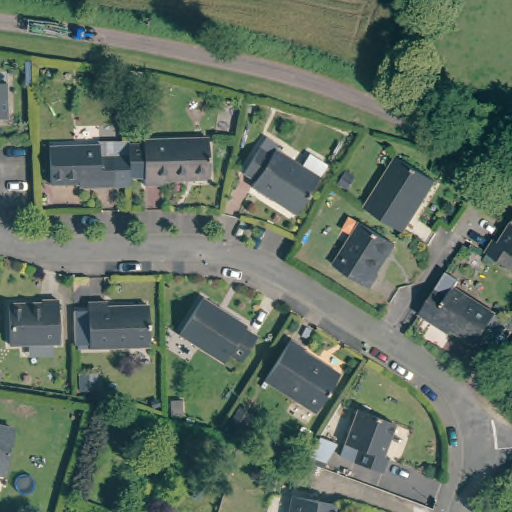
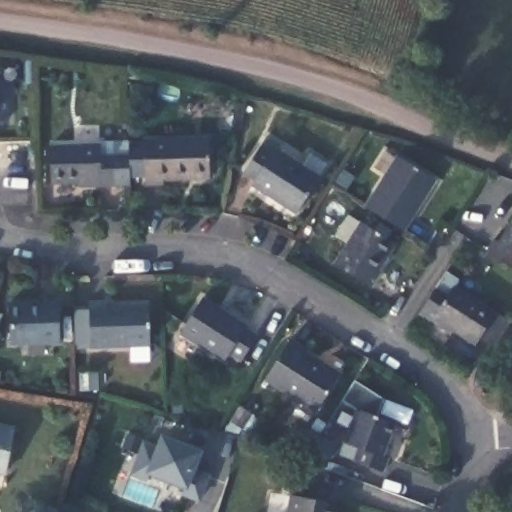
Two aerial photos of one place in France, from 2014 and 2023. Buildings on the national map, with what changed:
unchanged [(7,89),(8,115),(0,115),(0,79),(6,79),(7,89)]
unchanged [(142,139),(142,135),(207,134),(208,173),(161,176),(161,179),(143,180),(143,172),(128,173),(127,139),(142,139)]
unchanged [(76,178),(48,178),(48,141),(96,140),(97,137),(127,137),(127,139),(128,173),(128,181),(97,182),(76,183),(76,178)]
unchanged [(276,203),(253,187),(257,181),(245,172),(260,150),(267,139),(279,147),(276,151),(301,168),(309,155),(327,166),(299,212),(296,215),(276,203)]
unchanged [(434,177),(402,228),(364,205),(396,154),(434,177)]
unchanged [(367,286),(332,263),(360,220),(395,242),(367,286)]
unchanged [(495,249),(503,237),(506,239),(512,230),(512,260),(495,249)]
unchanged [(436,324),(423,316),(449,273),(462,282),(457,289),(512,322),(512,323),(496,347),(484,340),(480,345),(455,330),(453,334),(436,324)]
unchanged [(250,324),(260,331),(243,359),(233,351),(227,359),(183,330),(203,298),(205,295),(227,308),(251,322),(250,324)]
unchanged [(8,301),(40,300),(40,298),(57,298),(58,340),(8,341),(8,301)]
unchanged [(83,345),(82,308),(98,308),(98,299),(117,299),(117,302),(157,301),(158,343),(83,345)]
unchanged [(303,347),(301,349),(338,372),(314,410),(263,377),(289,338),(303,347)]
unchanged [(79,370),(93,370),(94,388),(79,389),(79,370)]
unchanged [(360,407),(399,420),(387,454),(391,455),(386,470),(359,459),(364,446),(348,441),(360,407)]
unchanged [(6,472),(0,471),(0,423),(15,426),(6,472)]
unchanged [(331,462),(309,453),(322,434),(339,441),(331,462)]
new [(156,447),(160,436),(202,451),(195,472),(209,477),(198,502),(180,496),(182,489),(150,477),(147,483),(130,477),(143,441),(156,447)]
unchanged [(334,503),(333,512),(286,512),(289,494),(334,503)]

